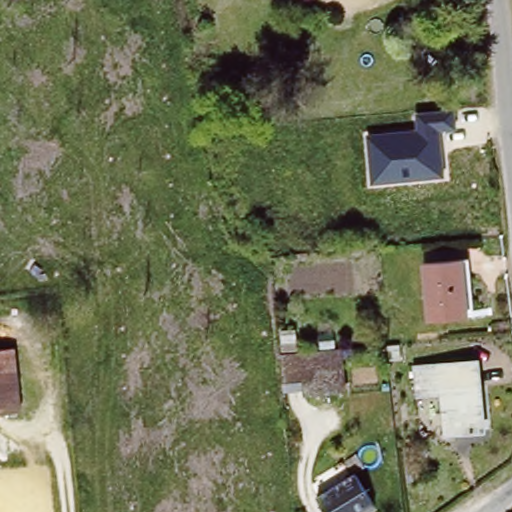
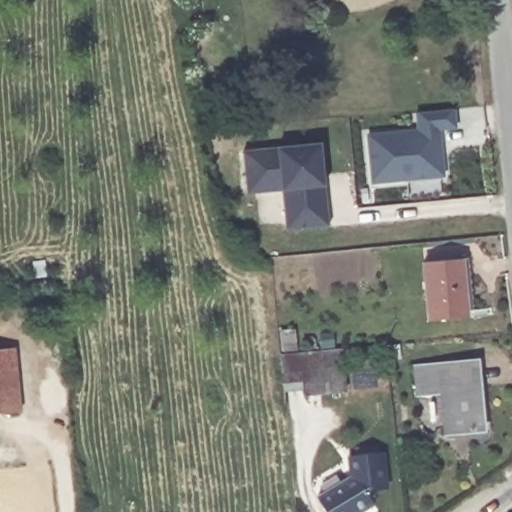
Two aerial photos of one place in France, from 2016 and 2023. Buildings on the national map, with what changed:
unchanged [(370,135),(416,129),(415,114),(454,109),(456,129),(440,132),(445,178),(371,184),(370,135)]
new [(287,229),(285,192),(282,192),(282,189),(248,193),(243,151),(276,147),(321,143),(325,188),(330,225),(287,229)]
unchanged [(468,316),(430,321),(425,265),(462,261),(468,316)]
unchanged [(316,345),(304,347),(302,327),(315,326),(316,345)]
unchanged [(301,350),(360,344),(364,388),(325,392),(323,376),(304,378),(301,350)]
unchanged [(22,412),(0,414),(0,349),(13,348),(22,412)]
unchanged [(483,429),(446,433),(443,393),(416,396),(413,368),(477,362),(483,429)]
new [(365,491),(355,475),(348,479),(345,456),(385,453),(390,490),(365,491)]
unchanged [(363,512),(324,512),(316,498),(355,475),(373,506),(363,512)]

